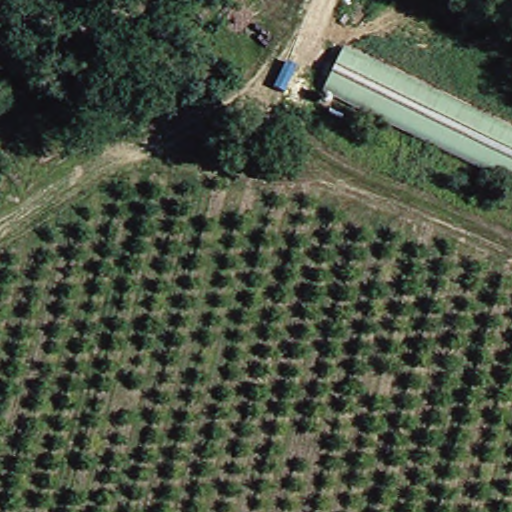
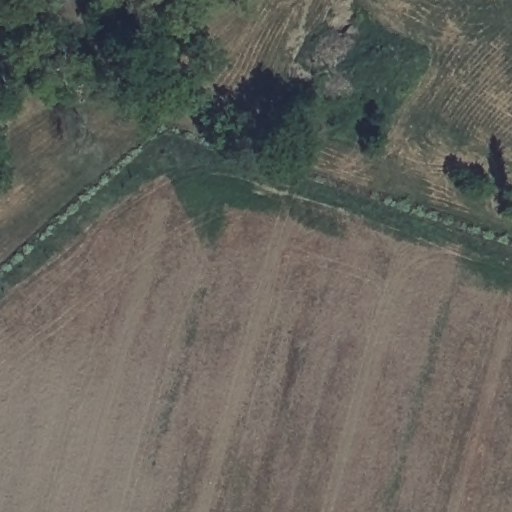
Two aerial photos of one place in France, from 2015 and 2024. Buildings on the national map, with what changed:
demolished [(512,135),(512,186),(322,87),(343,49),(512,135)]

